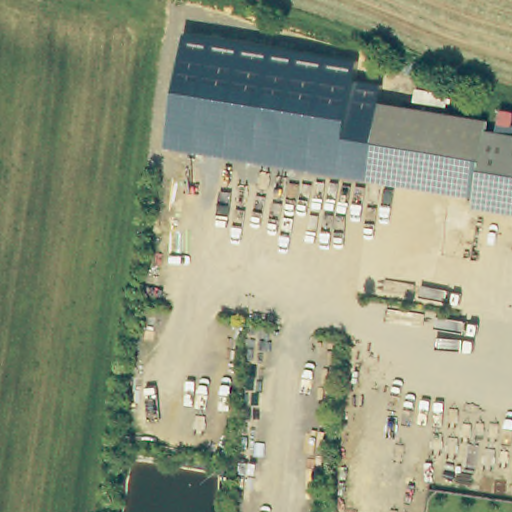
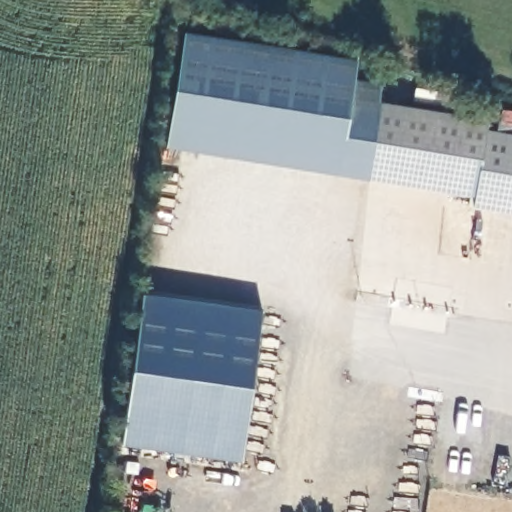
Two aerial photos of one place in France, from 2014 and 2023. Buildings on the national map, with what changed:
unchanged [(168,146),(185,35),(358,61),(357,81),(381,85),(381,100),(369,177),(168,146)]
unchanged [(473,204),(474,194),(470,193),(377,179),(369,177),(381,100),(390,101),(479,116),(486,117),(485,126),(512,131),(512,210),(473,204)]
new [(240,461),(122,445),(144,293),(262,310),(240,461)]

